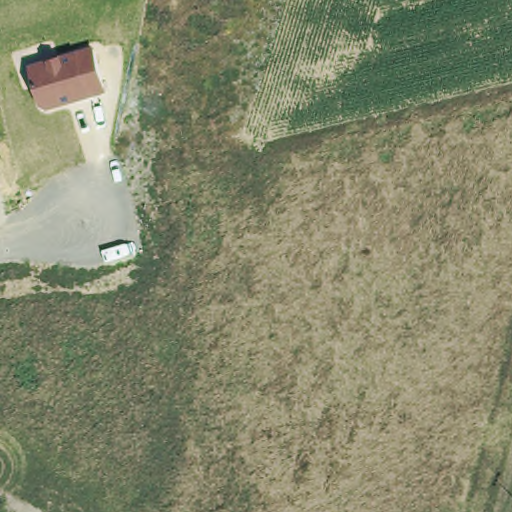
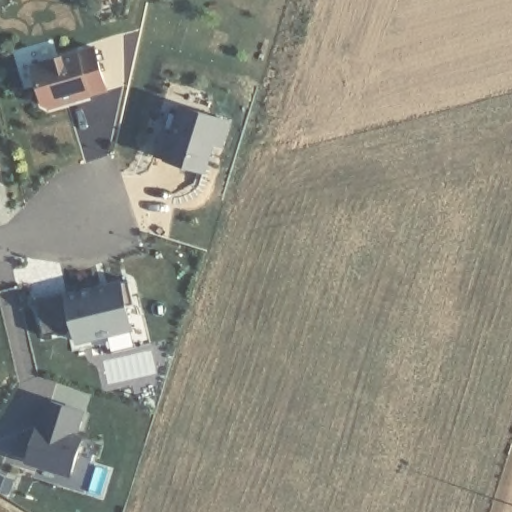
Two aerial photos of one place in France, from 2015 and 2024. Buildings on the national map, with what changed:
unchanged [(95,46),(108,94),(50,110),(40,105),(30,64),(95,46)]
new [(200,170),(154,155),(162,132),(174,136),(183,106),(229,120),(221,146),(212,144),(210,154),(204,171),(200,170)]
new [(122,280),(134,330),(78,345),(74,327),(44,334),(37,301),(122,280)]
new [(37,425),(41,425),(48,400),(84,411),(77,433),(82,435),(70,477),(24,463),(37,425)]

